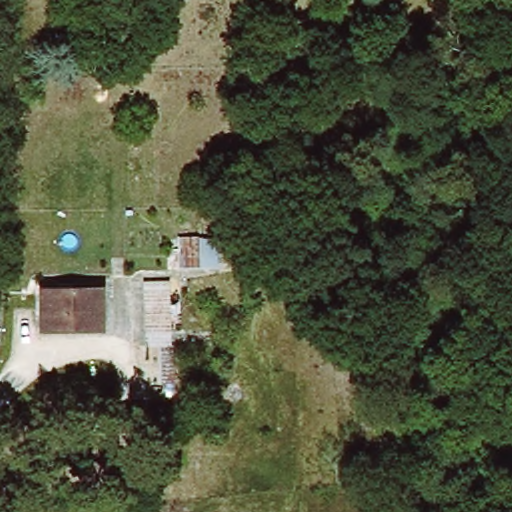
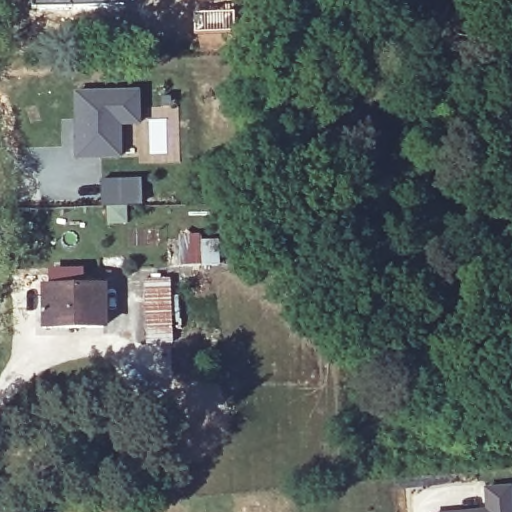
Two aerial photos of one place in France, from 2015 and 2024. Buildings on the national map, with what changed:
new [(32,9),(31,0),(70,0),(71,8),(32,9)]
new [(71,8),(70,0),(125,0),(125,7),(71,8)]
new [(76,94),(137,93),(137,124),(118,125),(119,157),(77,158),(76,133),(76,120),(76,94)]
new [(139,180),(140,208),(131,208),(102,209),(102,182),(130,180),(139,180)]
unchanged [(176,242),(210,243),(212,272),(177,274),(176,242)]
unchanged [(177,339),(176,386),(161,386),(159,349),(144,349),(142,284),(169,284),(171,304),(180,304),(182,339),(177,339)]
unchanged [(42,289),(105,287),(104,328),(44,329),(42,289)]
new [(485,490),(510,489),(511,512),(487,512),(485,490)]

